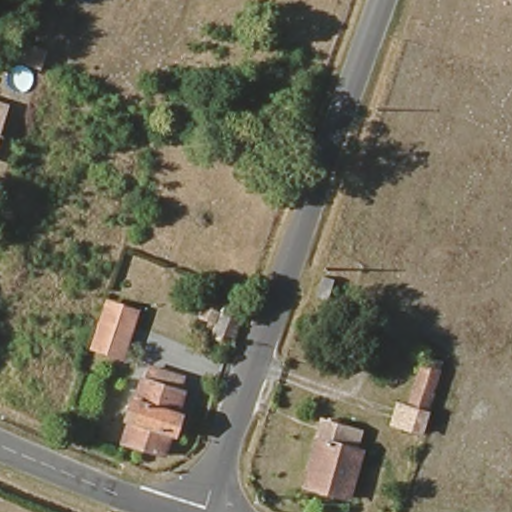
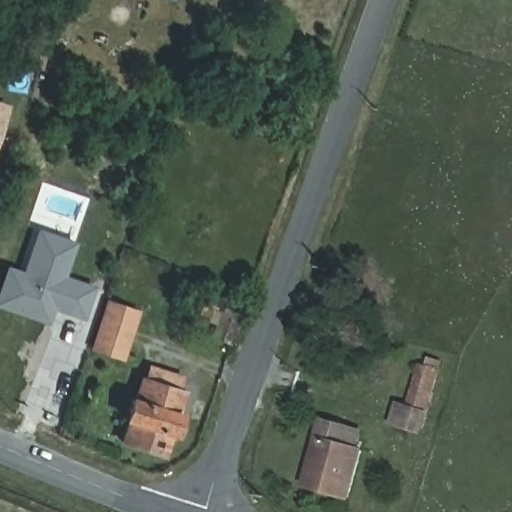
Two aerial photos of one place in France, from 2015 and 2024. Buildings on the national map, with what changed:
new [(19,43),(45,52),(38,71),(12,62),(19,43)]
unchanged [(0,105),(5,107),(0,123),(0,105)]
new [(96,285),(85,319),(54,309),(49,324),(0,308),(0,286),(6,265),(24,271),(37,229),(77,241),(66,276),(96,285)]
unchanged [(210,285),(194,344),(162,332),(179,278),(210,285)]
unchanged [(241,342),(223,336),(234,303),(252,309),(241,342)]
unchanged [(134,323),(120,356),(96,345),(107,314),(134,323)]
unchanged [(164,447),(115,428),(136,373),(145,376),(154,356),(182,367),(175,387),(184,390),(164,447)]
new [(397,402),(407,405),(420,364),(442,371),(423,435),(390,425),(397,402)]
unchanged [(358,437),(357,450),(368,454),(351,499),(303,483),(323,423),(358,437)]

